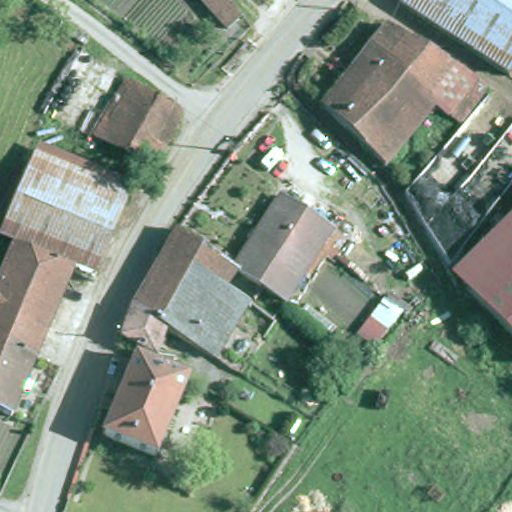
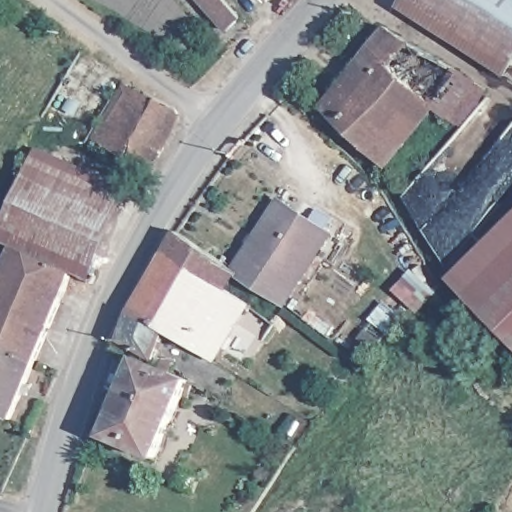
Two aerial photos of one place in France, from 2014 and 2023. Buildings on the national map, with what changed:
unchanged [(210,20),(193,0),(218,0),(223,6),(210,20)]
unchanged [(498,74),(492,70),(458,49),(430,30),(395,7),(399,0),(512,0),(512,53),(498,74)]
unchanged [(385,30),(482,96),(461,125),(447,113),(443,118),(433,109),(368,51),(385,30)]
unchanged [(433,109),(382,170),(320,111),(368,51),(433,109)]
unchanged [(127,79),(157,98),(128,151),(97,134),(127,79)]
unchanged [(178,112),(152,166),(128,151),(157,98),(178,112)]
unchanged [(129,205),(99,284),(73,274),(12,250),(5,247),(36,167),(95,191),(129,205)]
unchanged [(283,308),(261,292),(237,276),(279,215),(282,209),(285,210),(305,224),(332,244),(326,252),(287,310),(283,308)]
unchanged [(178,236),(187,242),(235,275),(237,276),(261,292),(250,311),(166,257),(178,236)]
unchanged [(465,296),(512,247),(512,282),(482,312),(465,296)]
unchanged [(8,416),(0,412),(0,275),(10,253),(12,250),(73,274),(51,321),(35,356),(8,416)]
unchanged [(265,344),(262,342),(240,327),(215,364),(168,335),(133,313),(166,257),(250,311),(248,314),(273,333),(265,344)]
unchanged [(482,312),(512,282),(512,342),(482,312)]
unchanged [(155,362),(122,343),(133,313),(168,335),(155,362)]
unchanged [(101,438),(137,361),(189,383),(153,461),(101,438)]

